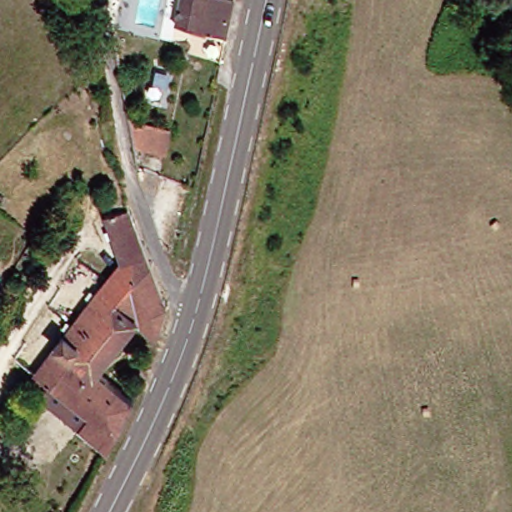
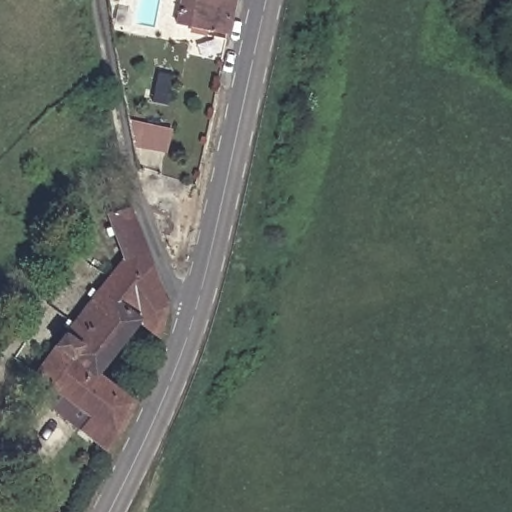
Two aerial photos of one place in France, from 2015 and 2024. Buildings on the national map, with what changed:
unchanged [(180,23),(186,0),(240,0),(231,36),(180,23)]
unchanged [(200,35),(229,44),(223,66),(195,57),(200,35)]
unchanged [(124,262),(110,214),(134,205),(154,267),(172,306),(162,338),(137,328),(100,373),(71,353),(48,381),(39,375),(55,349),(70,331),(100,292),(124,262)]
unchanged [(113,452),(87,432),(93,421),(48,381),(71,353),(100,373),(139,402),(113,452)]

